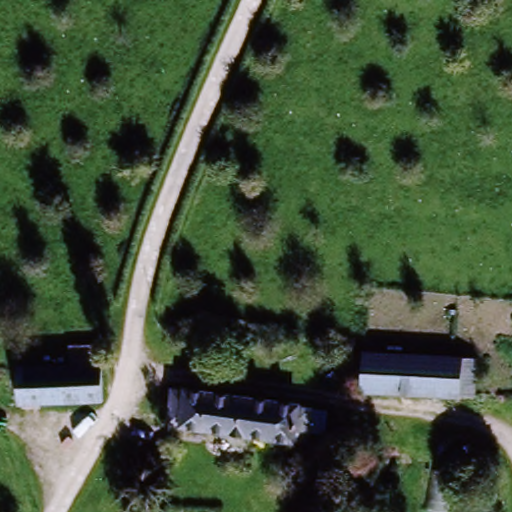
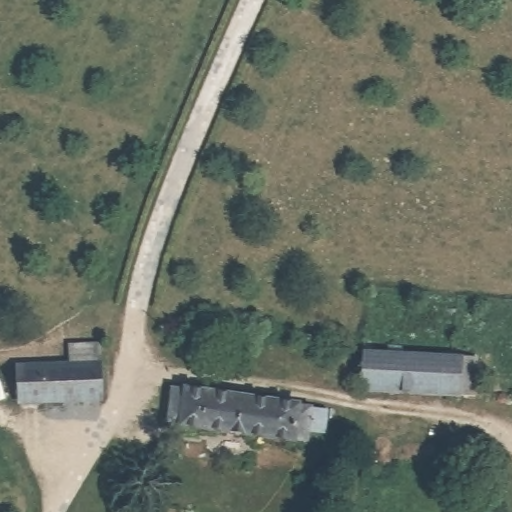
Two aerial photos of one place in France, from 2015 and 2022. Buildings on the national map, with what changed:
unchanged [(22,412),(19,375),(72,372),(70,354),(100,352),(101,370),(104,408),(22,412)]
unchanged [(481,403),(370,398),(370,393),(356,392),(358,359),(372,360),(483,365),(481,403)]
unchanged [(182,426),(170,424),(175,391),(187,393),(187,390),(300,407),(299,411),(312,413),(307,445),(295,444),(295,448),(181,430),(182,426)]

